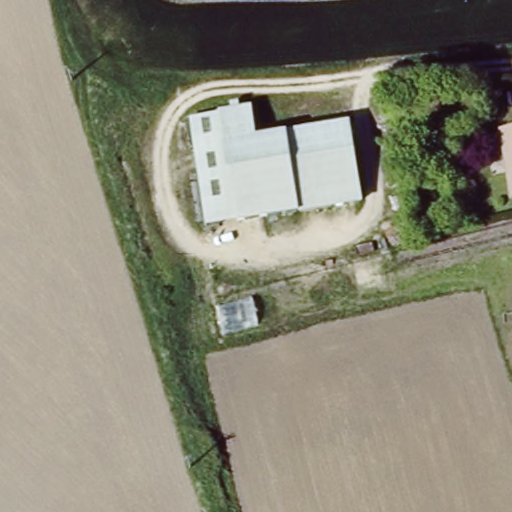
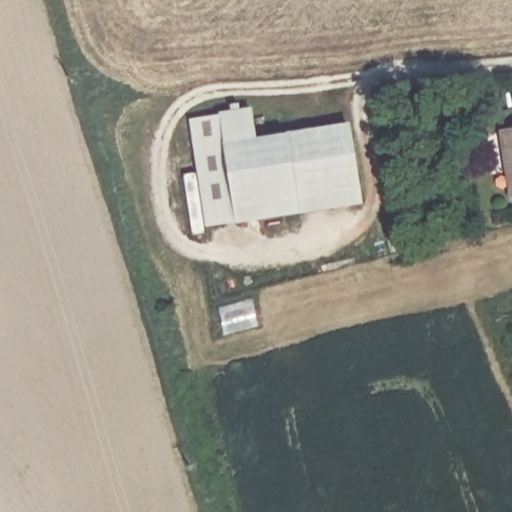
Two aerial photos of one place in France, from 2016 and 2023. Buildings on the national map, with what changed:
unchanged [(229,116),(227,107),(235,105),(237,114),(248,111),(255,141),(272,219),(240,227),(217,119),(229,116)]
unchanged [(368,114),(380,162),(350,170),(339,121),(368,114)]
unchanged [(240,227),(210,234),(186,126),(217,119),(240,227)]
unchanged [(387,191),(272,219),(255,141),(339,121),(350,170),(380,162),(387,191)]
unchanged [(511,202),(498,135),(512,131),(512,201),(511,202)]

